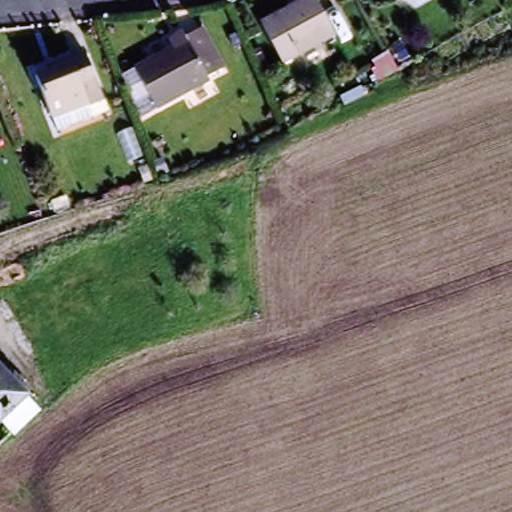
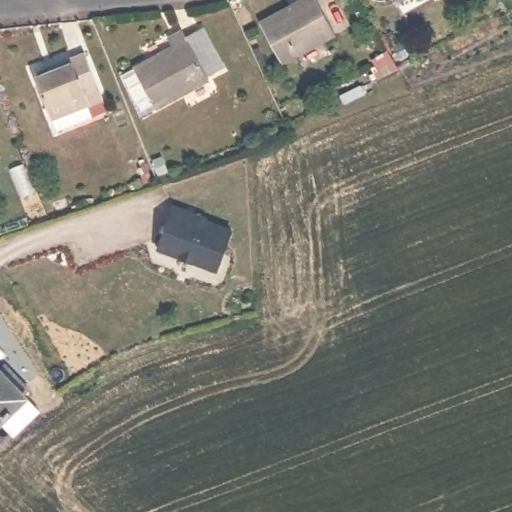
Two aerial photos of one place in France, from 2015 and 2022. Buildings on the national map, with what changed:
unchanged [(283,64),(262,21),(272,16),(276,20),(303,4),(302,0),(317,0),(336,36),(283,64)]
unchanged [(130,63),(148,55),(151,59),(173,49),(167,36),(185,27),(188,33),(201,28),(220,65),(208,72),(210,77),(151,106),(130,63)]
unchanged [(51,70),(85,55),(104,101),(86,109),(88,115),(54,129),(34,80),(53,73),(51,70)]
unchanged [(407,67),(388,78),(381,67),(401,55),(407,67)]
new [(174,205),(206,218),(205,220),(232,230),(217,270),(157,249),(174,205)]
unchanged [(0,425),(0,371),(3,368),(12,375),(7,380),(6,382),(15,389),(21,382),(30,390),(24,397),(28,400),(40,410),(34,415),(12,431),(7,425),(4,428),(0,425)]

